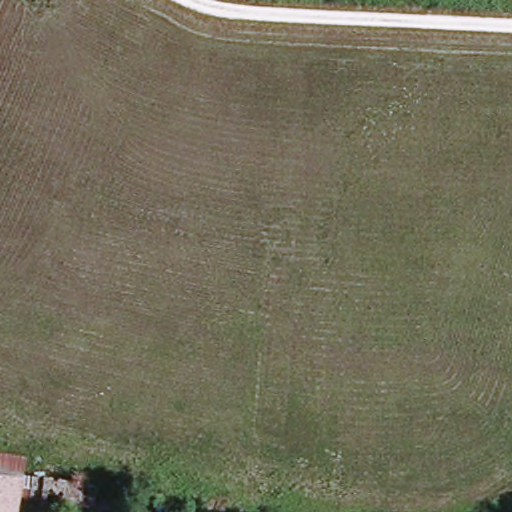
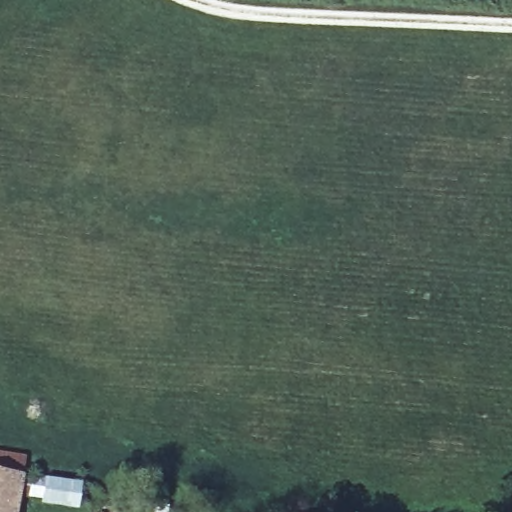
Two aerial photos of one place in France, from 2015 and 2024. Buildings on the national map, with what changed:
unchanged [(26,456),(23,478),(0,474),(0,451),(26,456)]
unchanged [(23,478),(17,512),(0,512),(0,474),(23,478)]
unchanged [(83,505),(81,511),(45,506),(46,500),(33,498),(35,480),(97,487),(95,506),(83,505)]

